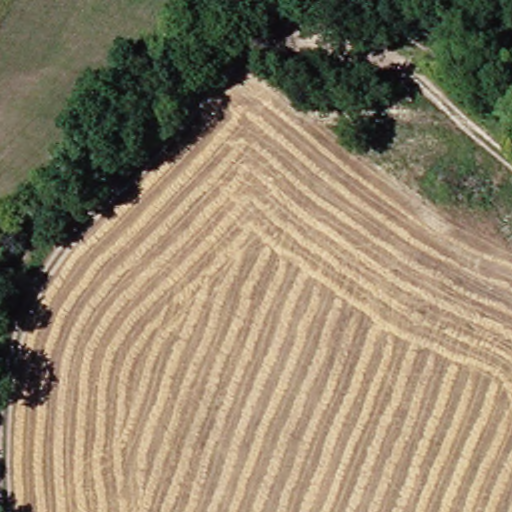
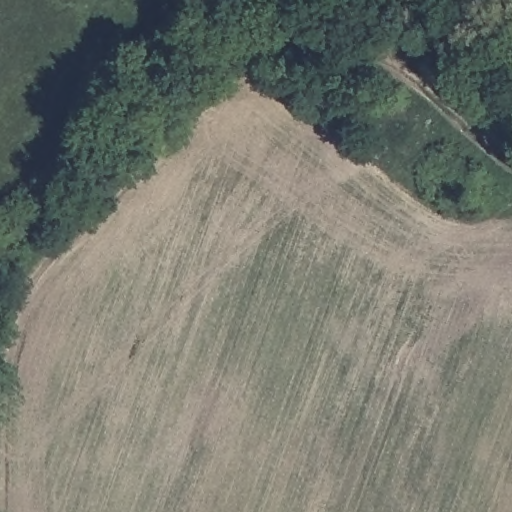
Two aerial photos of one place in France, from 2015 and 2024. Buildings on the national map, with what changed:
[]

